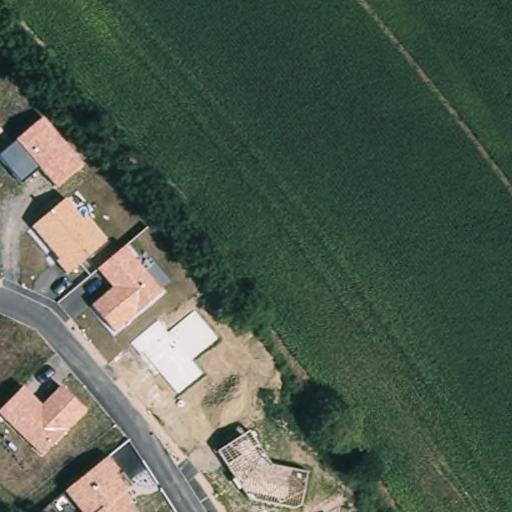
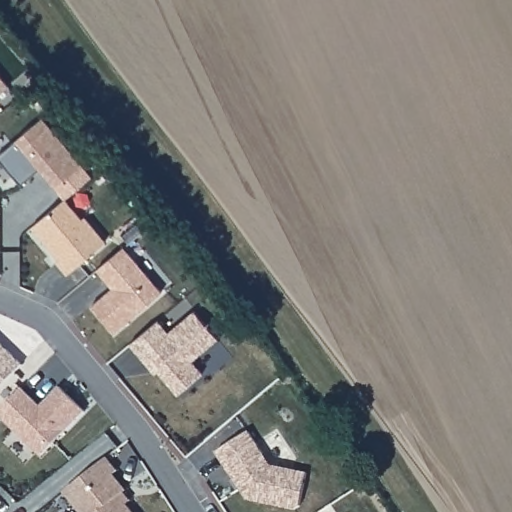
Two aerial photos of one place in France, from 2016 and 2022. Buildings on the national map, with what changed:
new [(9,86),(0,94),(0,76),(9,86)]
unchanged [(0,158),(0,154),(42,117),(82,163),(55,185),(38,169),(21,184),(0,158)]
unchanged [(66,199),(81,219),(86,218),(106,241),(65,274),(54,263),(57,260),(31,228),(66,199)]
unchanged [(111,288),(96,270),(126,245),(162,292),(114,332),(91,304),(111,288)]
new [(142,357),(131,344),(159,320),(169,333),(195,311),(219,339),(192,361),(204,374),(179,394),(159,371),(156,374),(142,357)]
new [(22,363),(0,386),(0,342),(22,363)]
unchanged [(41,455),(0,415),(0,409),(23,386),(42,405),(61,385),(86,409),(41,455)]
unchanged [(249,431),(270,464),(306,470),(302,504),(295,510),(246,498),(217,452),(249,431)]
unchanged [(65,491),(109,456),(118,468),(112,471),(133,496),(126,502),(134,512),(81,512),(65,491)]

